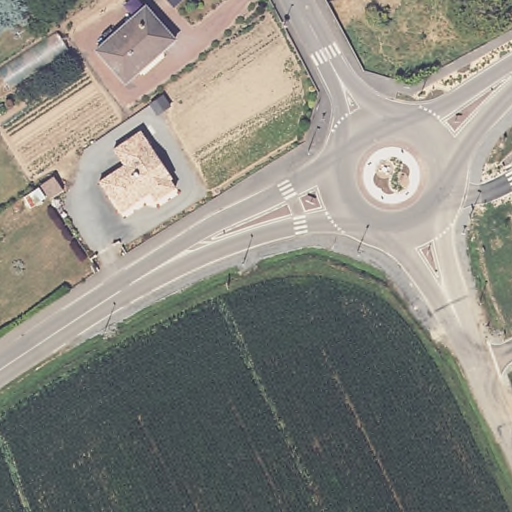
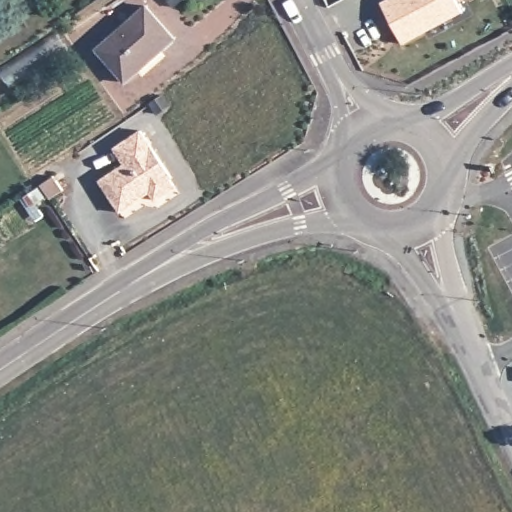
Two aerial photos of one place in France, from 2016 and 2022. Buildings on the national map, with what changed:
new [(403,44),(380,2),(385,0),(456,0),(462,12),(403,44)]
unchanged [(172,39),(123,82),(93,49),(143,5),(172,39)]
unchanged [(114,145),(141,126),(172,172),(170,175),(175,183),(156,195),(151,189),(122,207),(101,177),(125,160),(114,145)]
unchanged [(51,175),(60,190),(47,199),(37,185),(51,175)]

